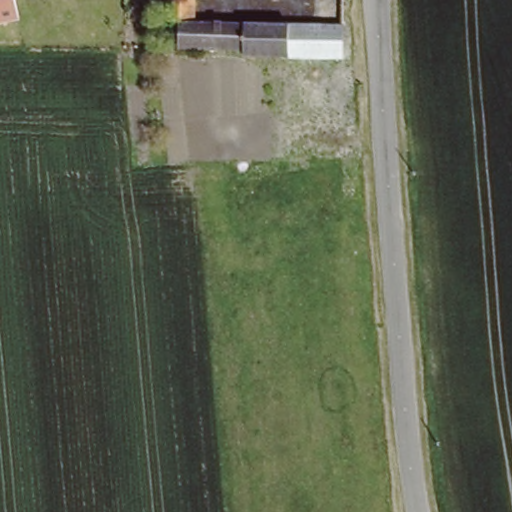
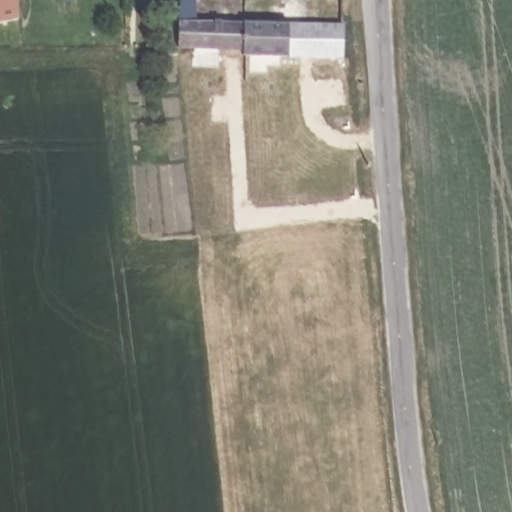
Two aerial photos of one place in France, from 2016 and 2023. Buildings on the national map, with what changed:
unchanged [(0,24),(0,0),(16,0),(20,20),(0,24)]
unchanged [(249,54),(248,50),(184,47),(186,0),(202,0),(201,18),(299,21),(301,56),(249,54)]
unchanged [(301,56),(299,21),(349,22),(350,57),(350,59),(301,56)]

